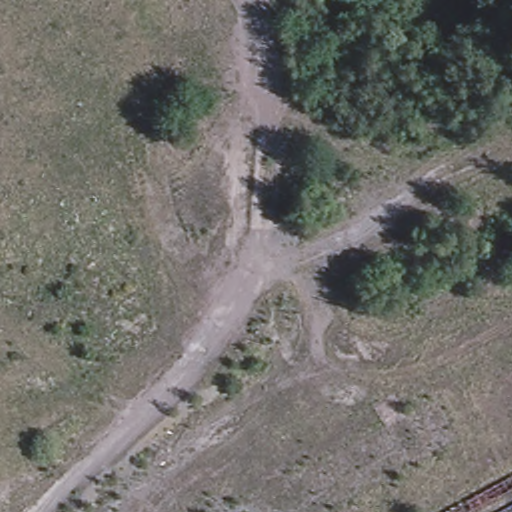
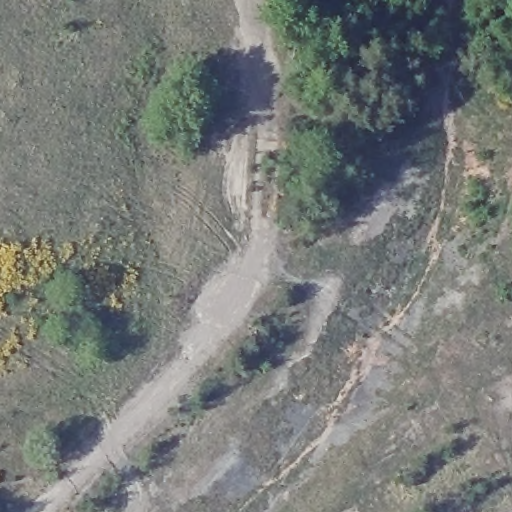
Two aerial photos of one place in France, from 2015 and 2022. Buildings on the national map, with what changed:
unchanged [(427,27),(429,52),(407,54),(404,29),(427,27)]

